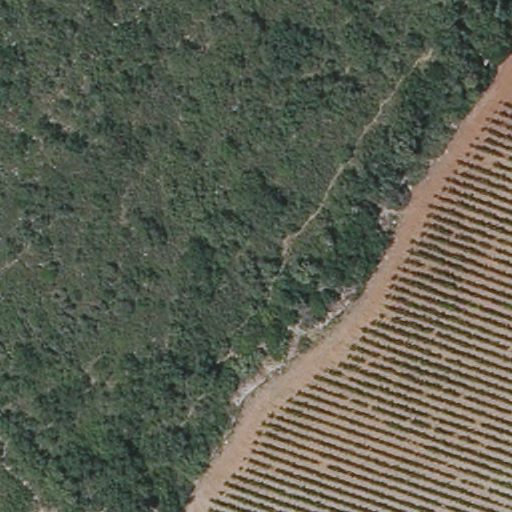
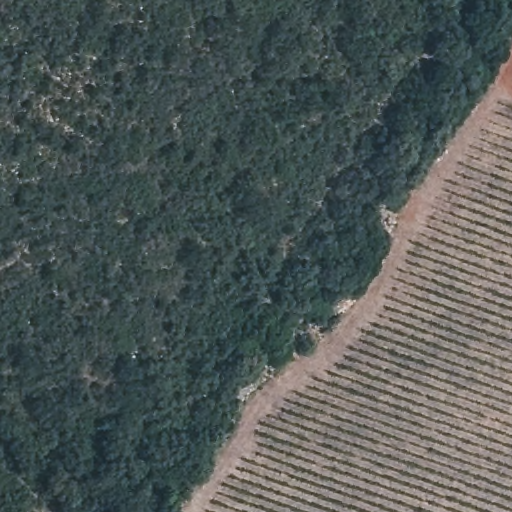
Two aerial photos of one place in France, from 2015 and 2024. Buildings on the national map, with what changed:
unchanged [(479,75),(462,63),(474,47),(490,58),(479,75)]

